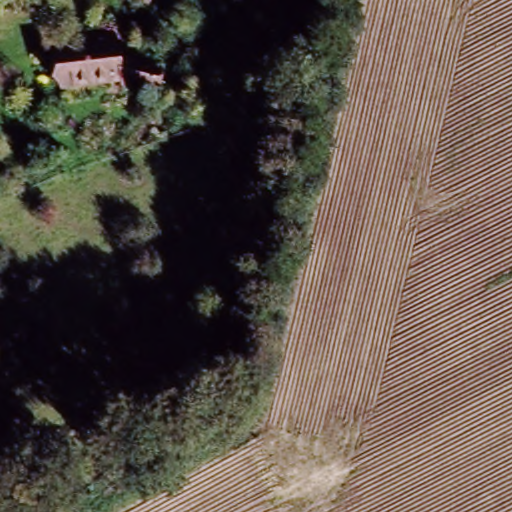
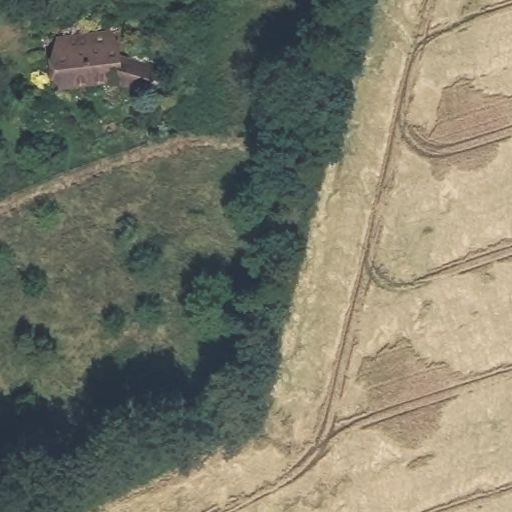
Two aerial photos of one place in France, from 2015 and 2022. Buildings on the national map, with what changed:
unchanged [(154,95),(111,83),(64,90),(56,40),(109,32),(113,53),(163,67),(154,95)]

